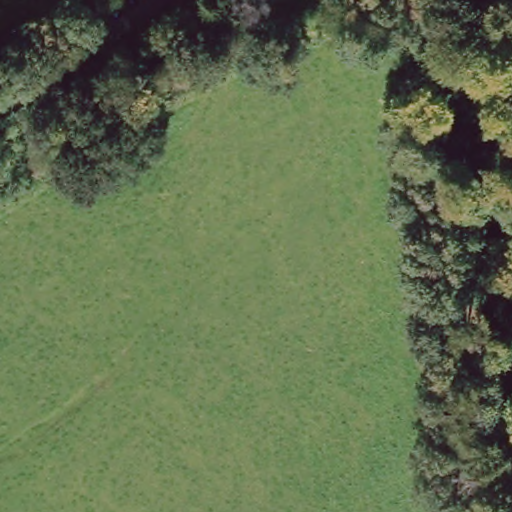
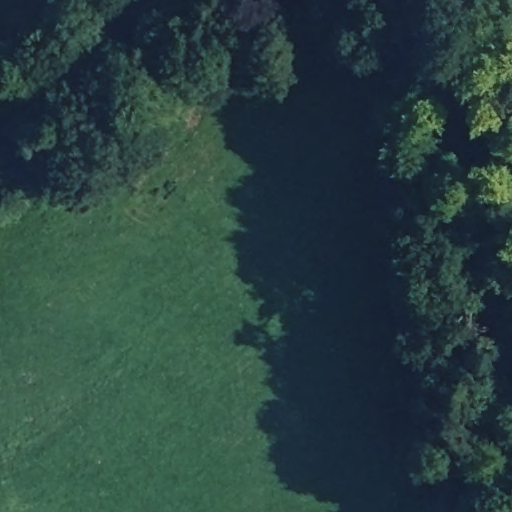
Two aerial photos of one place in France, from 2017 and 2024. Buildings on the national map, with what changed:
[]

